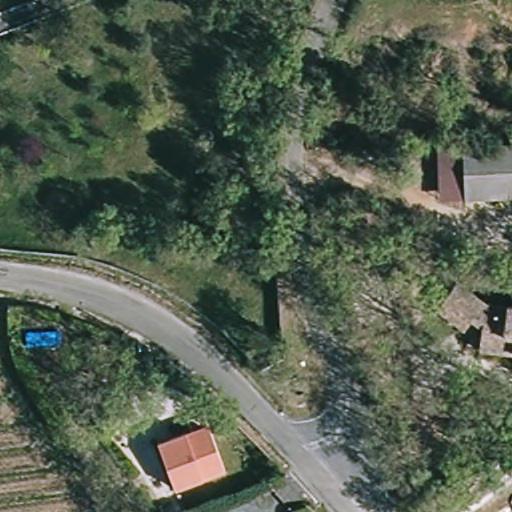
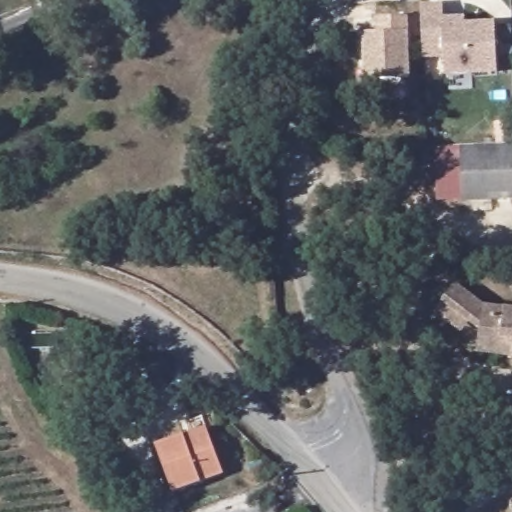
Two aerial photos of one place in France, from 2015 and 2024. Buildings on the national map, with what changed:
new [(441,14),(464,13),(465,20),(492,19),(495,74),(443,77),(442,59),(422,60),(420,8),(440,7),(441,14)]
new [(375,36),(375,21),(405,20),(408,81),(364,84),(362,37),(375,36)]
unchanged [(464,146),(512,144),(512,194),(465,196),(464,146)]
new [(465,200),(438,201),(437,148),(464,146),(465,196),(512,194),(512,199),(465,200)]
unchanged [(482,336),(439,305),(454,285),(486,310),(512,310),(512,360),(482,360),(482,336)]
unchanged [(171,487),(156,442),(187,431),(185,421),(207,414),(212,429),(225,471),(171,487)]

